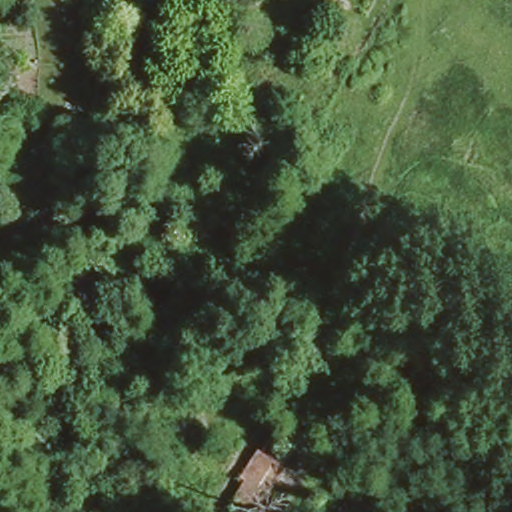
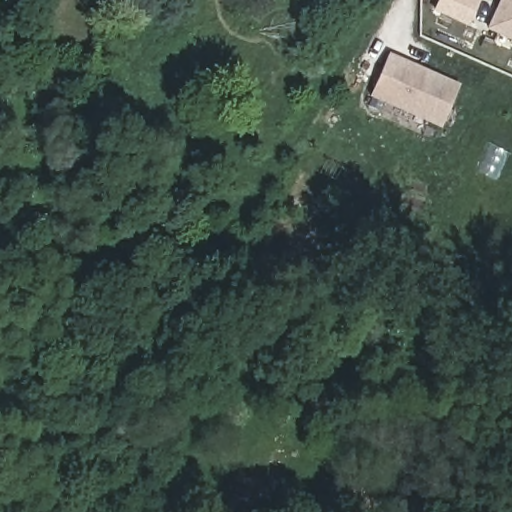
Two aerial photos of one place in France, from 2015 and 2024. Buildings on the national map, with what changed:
new [(504,0),(512,0),(512,41),(491,32),(504,0)]
new [(390,57),(460,89),(441,131),(371,99),(390,57)]
unchanged [(260,510),(231,492),(270,433),(296,452),(260,510)]

